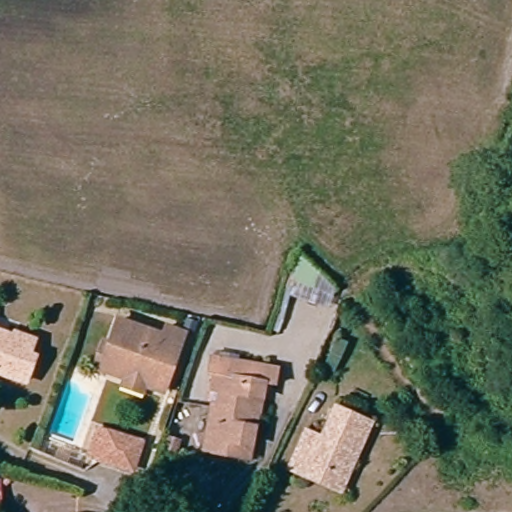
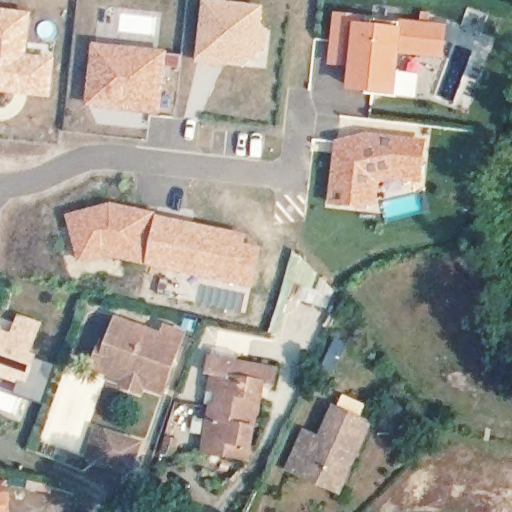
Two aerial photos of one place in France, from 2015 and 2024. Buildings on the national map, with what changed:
new [(204,0),(216,0),(264,6),(262,24),(269,30),(267,47),(245,66),(197,61),(204,0)]
new [(0,96),(0,9),(33,13),(28,55),(56,57),(52,98),(0,91),(0,96)]
new [(347,89),(350,66),(327,65),(336,12),(356,14),(355,22),(405,27),(405,20),(447,25),(444,57),(402,54),(400,72),(420,73),(417,97),(347,89)]
new [(86,106),(92,42),(168,51),(161,114),(86,106)]
new [(395,174),(375,180),(373,205),(334,202),(338,151),(369,143),(370,136),(424,142),(420,178),(395,174)]
new [(105,256),(79,264),(66,215),(110,202),(157,212),(146,265),(105,256)]
new [(247,234),(244,244),(263,248),(254,289),(147,267),(146,265),(156,216),(247,234)]
new [(277,332),(271,331),(295,251),(335,292),(330,308),(289,297),(277,332)]
unchanged [(117,386),(119,379),(103,373),(86,367),(95,345),(101,347),(110,321),(155,337),(158,328),(176,334),(155,392),(136,385),(133,392),(117,386)]
unchanged [(10,332),(29,338),(25,351),(30,353),(22,377),(0,370),(0,333),(9,336),(10,332)]
unchanged [(204,406),(209,406),(211,391),(201,388),(203,372),(198,371),(200,355),(267,368),(265,383),(255,382),(249,418),(245,417),(238,456),(197,449),(204,406)]
unchanged [(294,473),(280,466),(297,429),(313,436),(328,407),(362,423),(335,480),(330,491),(294,473)]
unchanged [(140,444),(131,471),(88,458),(97,431),(140,444)]

